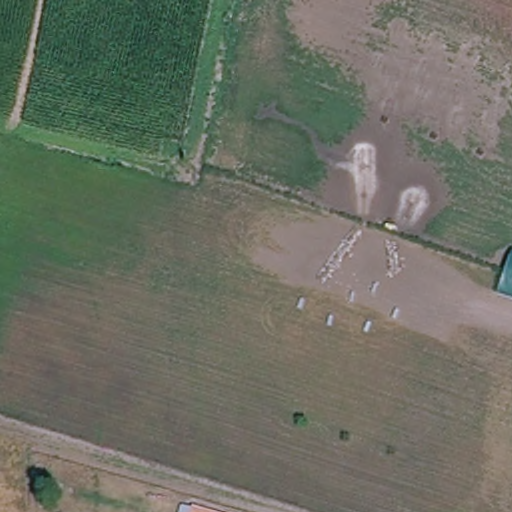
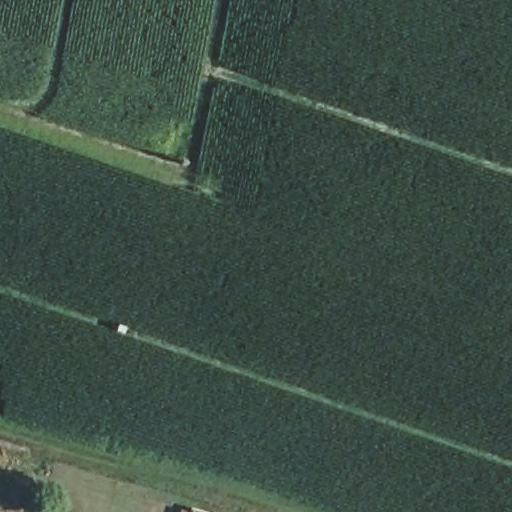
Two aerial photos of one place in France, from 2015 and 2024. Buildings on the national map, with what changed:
demolished [(494,297),(509,255),(512,255),(512,302),(494,297)]

